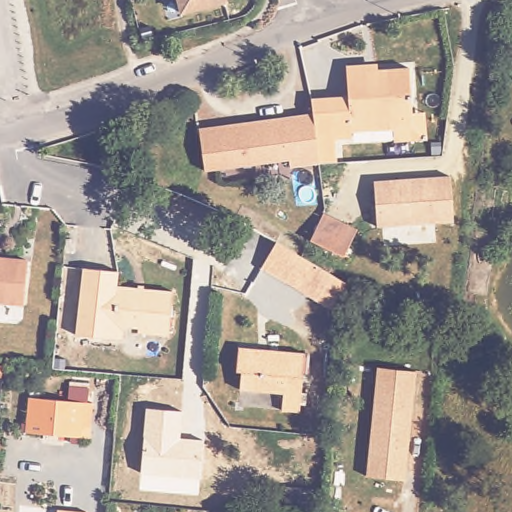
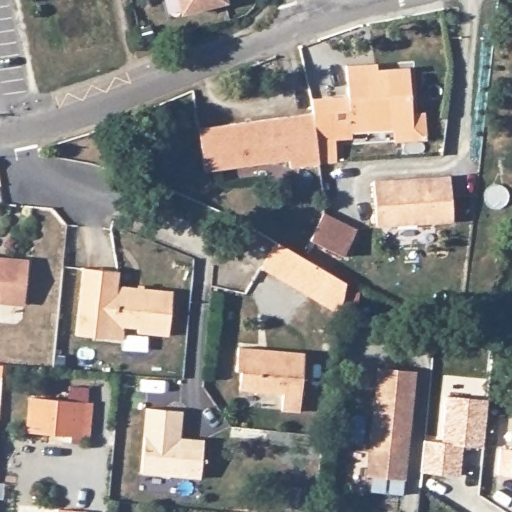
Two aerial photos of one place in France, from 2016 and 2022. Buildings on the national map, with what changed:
unchanged [(182,11),(179,0),(227,0),(182,11)]
unchanged [(427,137),(399,138),(398,128),(355,131),(352,126),(334,128),(331,96),(350,95),(348,65),(367,64),(367,68),(408,66),(411,109),(425,108),(427,137)]
unchanged [(334,128),(352,126),(352,140),(335,141),(338,161),(291,169),(290,161),(206,172),(200,128),(313,113),(312,99),(331,96),(334,128)]
unchanged [(453,173),(455,222),(378,228),(374,181),(453,173)]
unchanged [(344,261),(308,245),(321,215),(357,231),(344,261)]
demolished [(83,219),(79,246),(77,247),(67,246),(72,218),(83,219)]
unchanged [(301,254),(353,280),(349,311),(265,270),(278,243),(301,254)]
unchanged [(29,307),(0,304),(0,261),(34,265),(29,307)]
unchanged [(173,293),(166,339),(136,334),(137,327),(122,325),(120,338),(74,331),(84,264),(119,270),(117,284),(173,293)]
unchanged [(298,411),(278,410),(279,396),(234,392),(236,368),(230,365),(231,347),(302,354),(298,411)]
unchanged [(417,370),(406,480),(369,477),(378,369),(417,370)]
new [(424,440),(442,441),(445,395),(488,398),(484,448),(463,447),(460,476),(421,471),(424,440)]
unchanged [(85,437),(77,436),(22,431),(25,397),(80,402),(89,402),(85,437)]
unchanged [(180,436),(205,440),(200,480),(139,474),(145,407),(183,411),(180,436)]
new [(512,450),(512,476),(497,475),(499,449),(512,450)]

